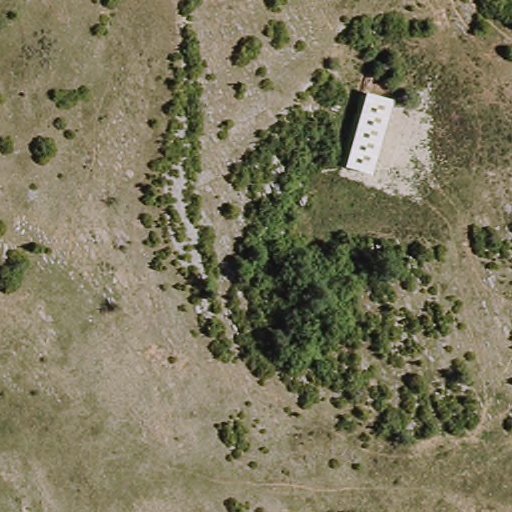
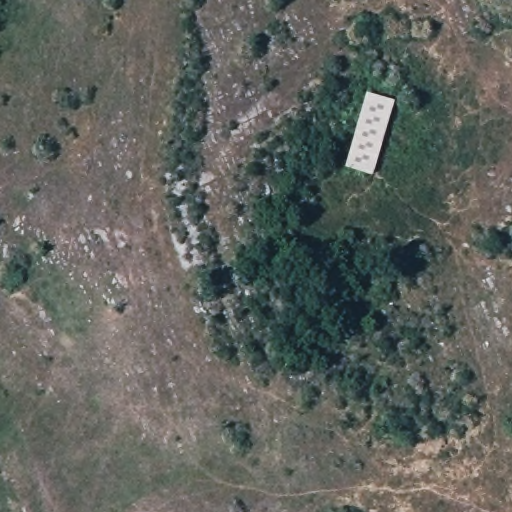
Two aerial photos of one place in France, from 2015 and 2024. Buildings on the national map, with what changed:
unchanged [(346,165),(367,92),(395,100),(373,175),(346,165)]

